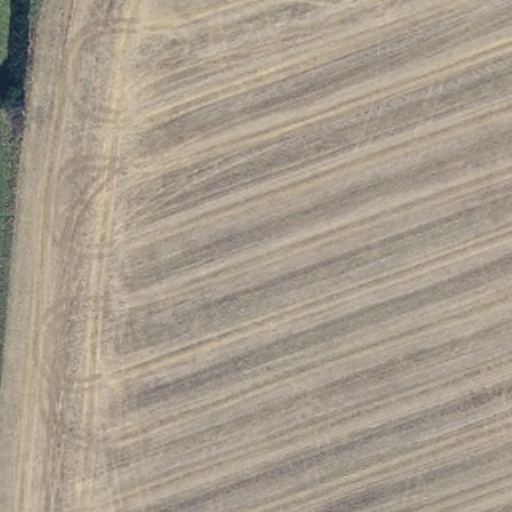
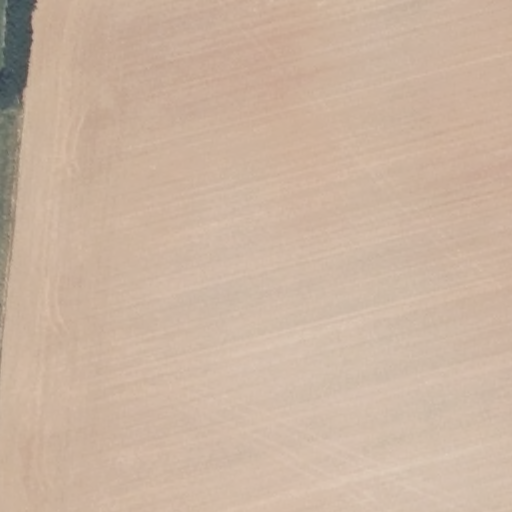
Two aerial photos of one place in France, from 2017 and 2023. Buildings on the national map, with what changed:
[]

